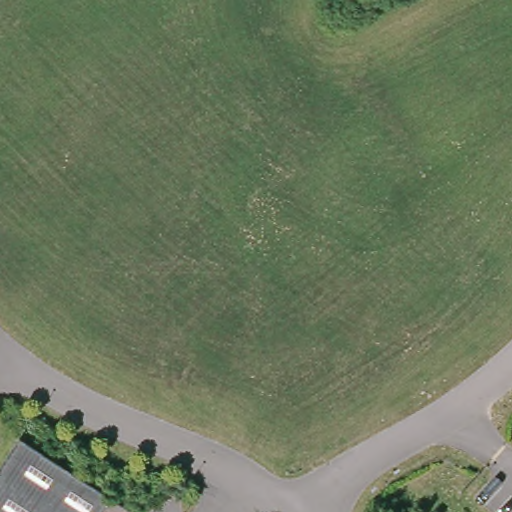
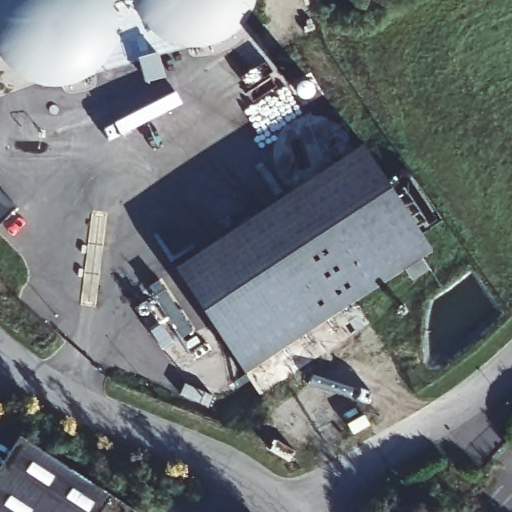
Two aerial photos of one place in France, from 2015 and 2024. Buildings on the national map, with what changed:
new [(246,374),(176,267),(363,144),(433,250),(424,257),(429,270),(412,281),(405,269),(246,374)]
unchanged [(0,465),(22,430),(139,506),(135,512),(0,512),(0,465)]

